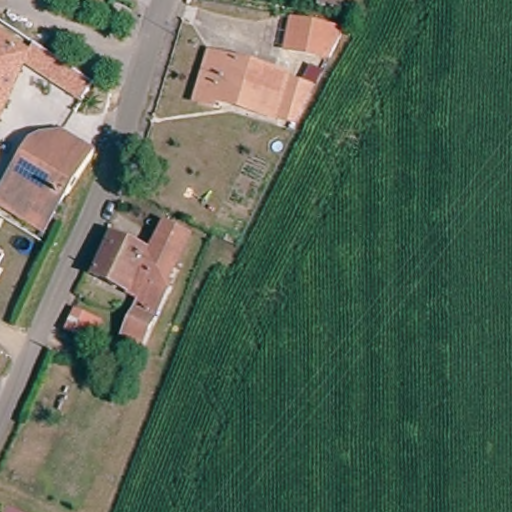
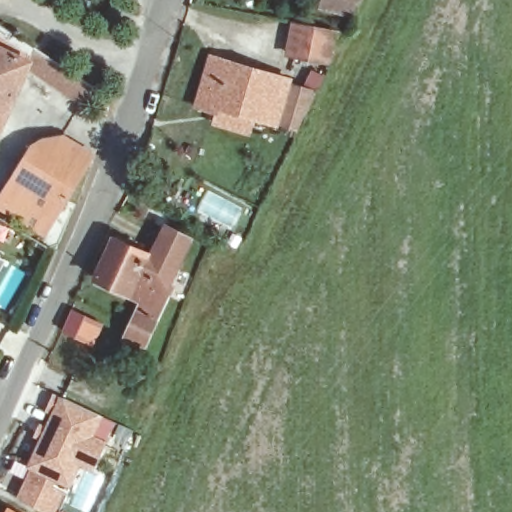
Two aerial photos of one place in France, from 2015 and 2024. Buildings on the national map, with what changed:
unchanged [(327,16),(331,0),(368,0),(357,25),(327,16)]
unchanged [(327,66),(282,44),(294,16),(340,38),(327,66)]
unchanged [(0,45),(29,65),(0,132),(0,45)]
unchanged [(34,45),(94,84),(79,108),(24,74),(29,65),(34,45)]
unchanged [(219,94),(214,101),(201,94),(217,61),(229,68),(235,58),(290,84),(287,90),(273,119),(258,111),(219,94)]
unchanged [(314,93),(300,86),(307,73),(320,80),(314,93)]
unchanged [(293,136),(254,119),(258,111),(273,119),(287,90),(310,101),(293,136)]
unchanged [(60,202),(40,237),(0,212),(0,193),(29,145),(47,156),(59,139),(89,159),(63,203),(60,202)]
unchanged [(127,343),(134,327),(145,305),(99,282),(116,245),(152,260),(166,230),(188,241),(176,268),(179,269),(172,284),(174,286),(152,336),(145,351),(127,343)]
unchanged [(0,268),(0,254),(5,258),(0,268)]
unchanged [(102,332),(94,349),(66,336),(69,328),(74,319),(102,332)]
new [(59,397),(103,416),(94,436),(107,442),(93,473),(79,467),(70,487),(26,467),(59,397)]
new [(9,507),(18,512),(6,512),(9,507)]

